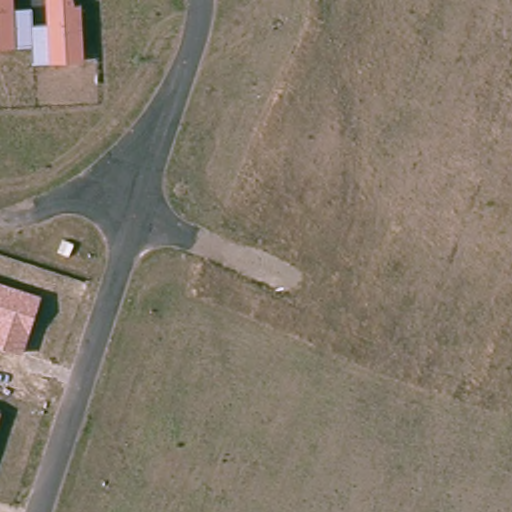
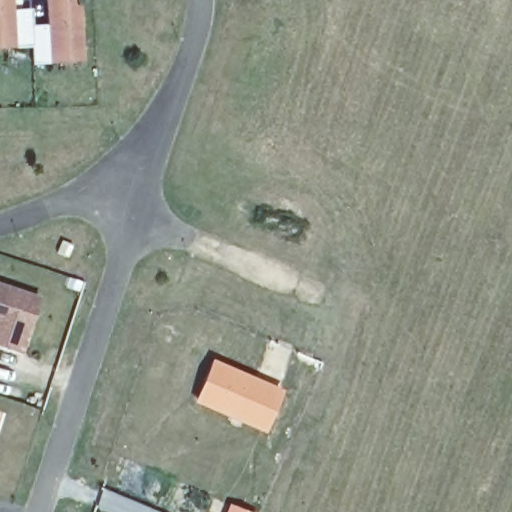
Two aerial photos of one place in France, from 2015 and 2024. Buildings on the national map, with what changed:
unchanged [(0,49),(0,0),(14,0),(14,9),(32,9),(33,24),(48,24),(47,0),(74,0),(75,4),(82,5),(84,60),(33,64),(32,47),(0,49)]
unchanged [(42,296),(23,355),(0,347),(0,282),(42,296)]
new [(212,358),(282,388),(265,434),(193,403),(212,358)]
new [(228,503),(253,512),(225,512),(228,503)]

